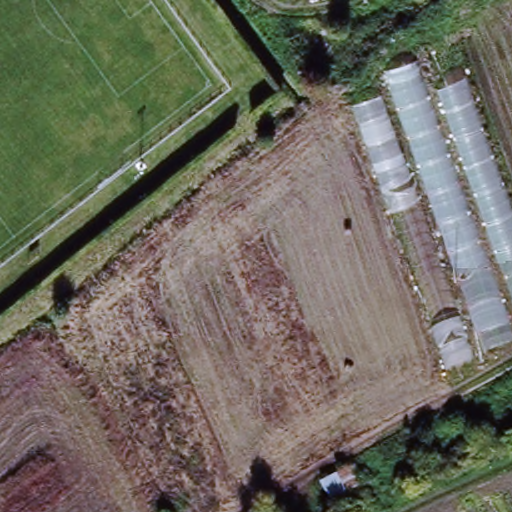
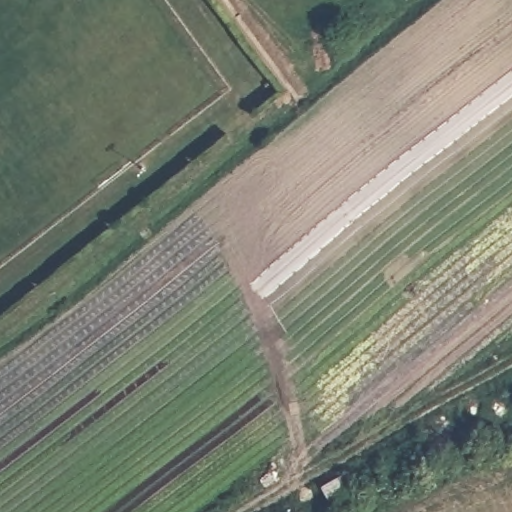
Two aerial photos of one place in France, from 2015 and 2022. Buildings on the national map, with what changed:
demolished [(512,327),(512,345),(481,353),(483,363),(449,371),(354,101),(393,90),(386,67),(416,57),(512,327)]
demolished [(512,212),(512,297),(437,89),(465,81),(512,212)]
unchanged [(366,512),(343,512),(320,481),(351,466),(377,507),(366,512)]

